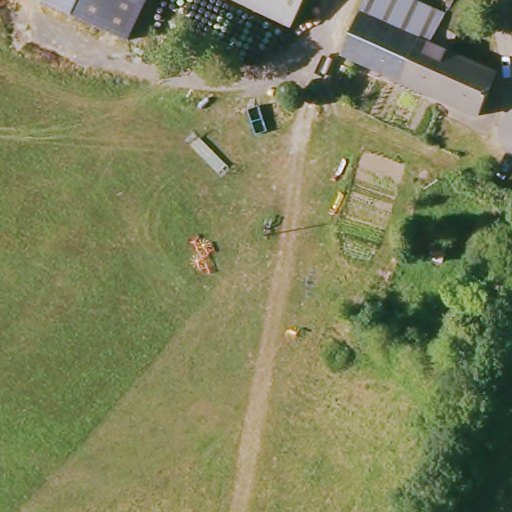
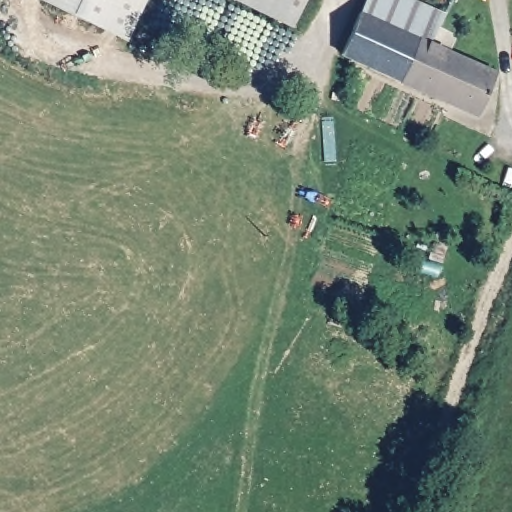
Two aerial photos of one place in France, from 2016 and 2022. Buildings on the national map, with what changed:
unchanged [(43,0),(147,0),(128,39),(43,0)]
unchanged [(236,0),(304,0),(292,27),(236,0)]
unchanged [(407,0),(440,15),(434,27),(426,44),(356,11),(361,0),(407,0)]
unchanged [(451,35),(444,52),(491,74),(473,116),(396,82),(337,54),(356,11),(426,44),(434,27),(451,35)]
unchanged [(438,234),(449,237),(441,262),(429,258),(438,234)]

